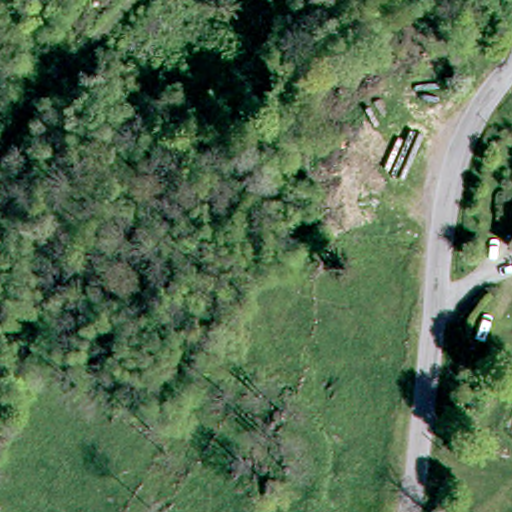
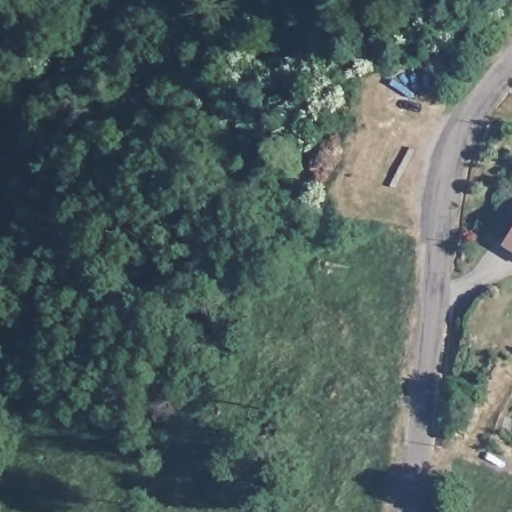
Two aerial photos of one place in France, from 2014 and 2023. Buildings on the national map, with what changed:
unchanged [(512,229),(512,256),(499,247),(512,229)]

